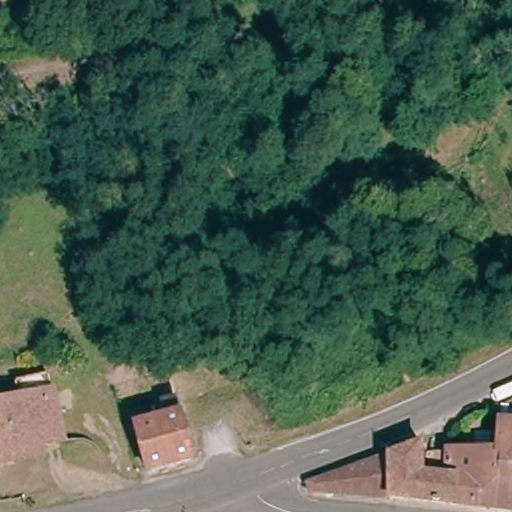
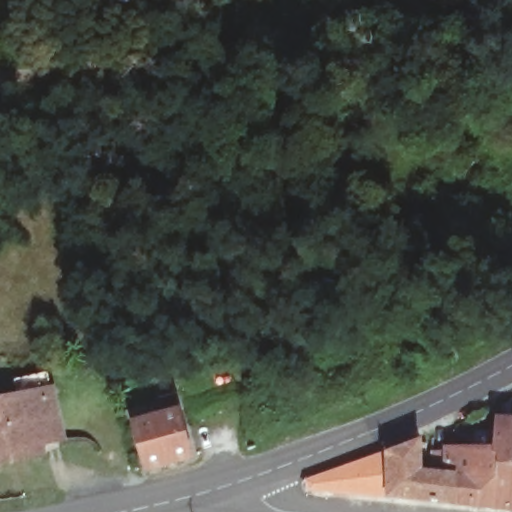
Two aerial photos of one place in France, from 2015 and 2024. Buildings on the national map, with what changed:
unchanged [(5,459),(0,460),(0,398),(20,393),(18,379),(50,371),(54,385),(66,432),(46,436),(49,448),(5,459)]
unchanged [(134,421),(161,415),(156,392),(177,387),(197,465),(149,477),(134,421)]
unchanged [(444,484),(449,425),(458,420),(458,450),(506,451),(508,420),(512,420),(512,502),(512,492),(444,484)]
unchanged [(512,492),(512,502),(512,511),(326,491),(324,475),(382,453),(449,425),(444,484),(512,492)]

